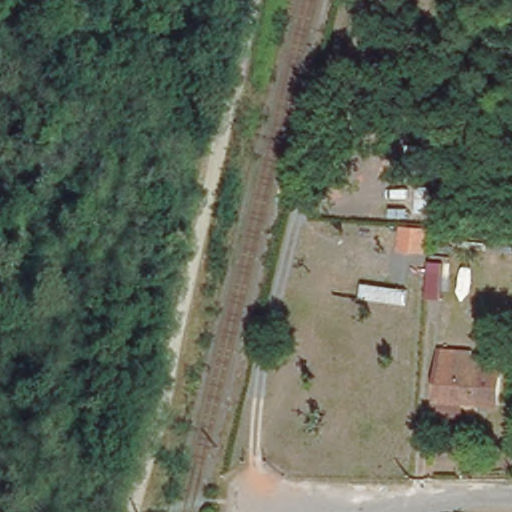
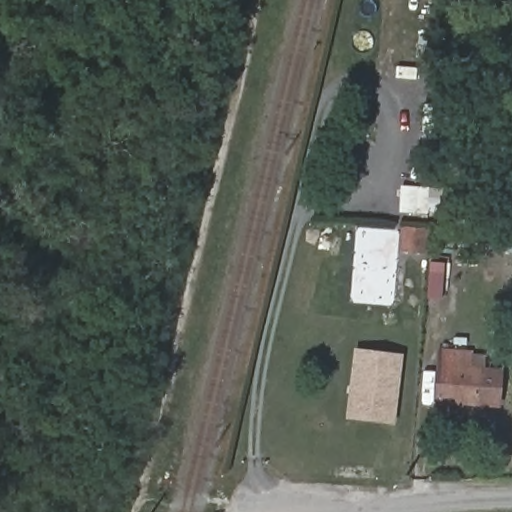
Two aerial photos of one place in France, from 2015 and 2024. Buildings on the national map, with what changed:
new [(405,186),(430,187),(429,212),(404,211),(405,186)]
new [(402,227),(429,229),(427,249),(400,247),(402,227)]
unchanged [(444,262),(442,290),(429,289),(431,261),(444,262)]
new [(366,285),(408,290),(406,303),(364,299),(366,285)]
new [(345,418),(353,347),(378,350),(403,353),(394,424),(370,421),(345,418)]
unchanged [(468,410),(466,423),(431,419),(436,348),(503,352),(500,411),(468,410)]

